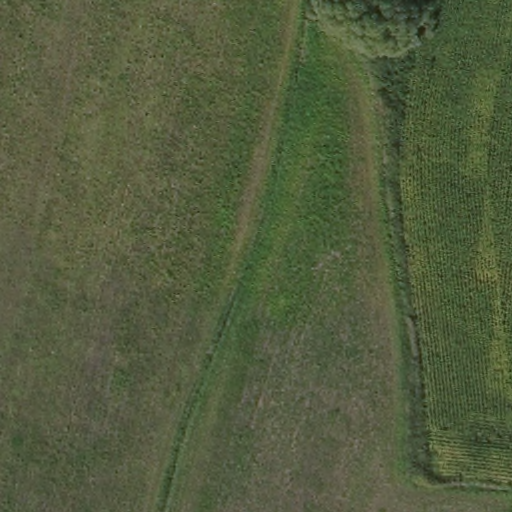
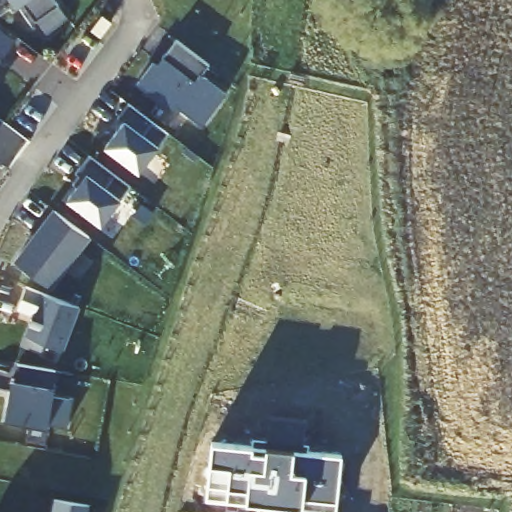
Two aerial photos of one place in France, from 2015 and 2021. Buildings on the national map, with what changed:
new [(35,21),(21,4),(15,9),(9,0),(52,0),(57,6),(35,21)]
new [(14,44),(2,59),(0,58),(0,33),(14,44)]
new [(209,66),(201,76),(226,95),(202,126),(177,109),(173,113),(137,85),(154,64),(157,66),(162,58),(165,59),(176,41),(209,66)]
new [(124,122),(117,118),(128,105),(167,135),(159,149),(139,174),(105,148),(124,122)]
new [(76,174),(90,157),(129,189),(120,202),(100,227),(67,200),(77,187),(74,184),(79,177),(76,174)]
new [(52,212),(91,239),(51,290),(15,263),(52,212)]
new [(31,316),(17,311),(24,289),(41,295),(41,294),(79,307),(63,352),(45,344),(41,354),(40,354),(20,345),(24,337),(31,316)]
new [(17,366),(55,373),(54,389),(52,397),(69,399),(64,428),(47,424),(46,429),(4,421),(11,382),(15,383),(17,366)]
new [(266,419),(302,423),(300,448),(263,444),(266,419)]
new [(209,444),(250,449),(250,454),(262,456),(262,450),(338,458),(333,512),(309,512),(281,509),(280,512),(268,512),(268,508),(247,506),(246,512),(234,512),(235,505),(203,502),(209,444)]
new [(53,501),(89,507),(88,512),(51,512),(53,501)]

